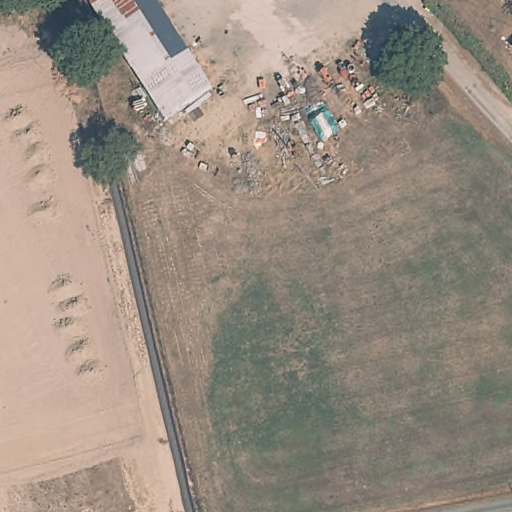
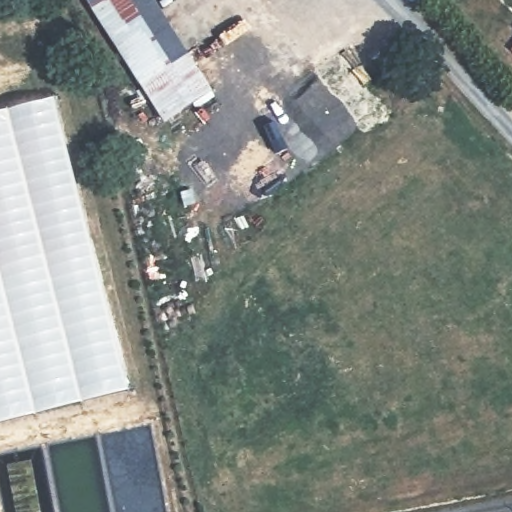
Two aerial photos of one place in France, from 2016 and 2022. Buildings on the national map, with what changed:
unchanged [(141,86),(90,5),(96,0),(157,0),(191,54),(141,86)]
new [(55,96),(130,390),(0,423),(0,110),(55,96)]

